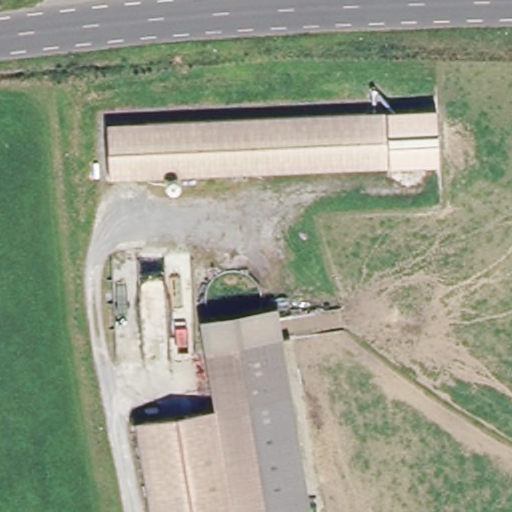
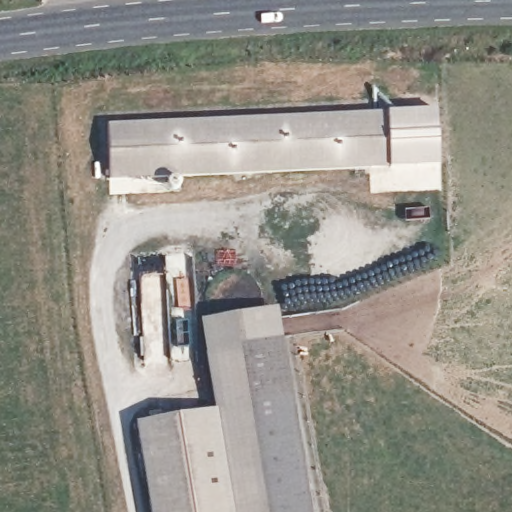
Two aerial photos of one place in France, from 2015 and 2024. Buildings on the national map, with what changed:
unchanged [(436,165),(385,166),(385,165),(265,169),(105,175),(104,121),(435,110),(436,165)]
unchanged [(210,352),(210,350),(206,322),(280,313),(284,343),(272,345),(210,352)]
unchanged [(309,512),(296,512),(272,345),(284,343),(309,512)]
unchanged [(138,425),(219,413),(210,352),(272,345),(296,512),(151,512),(138,425)]

